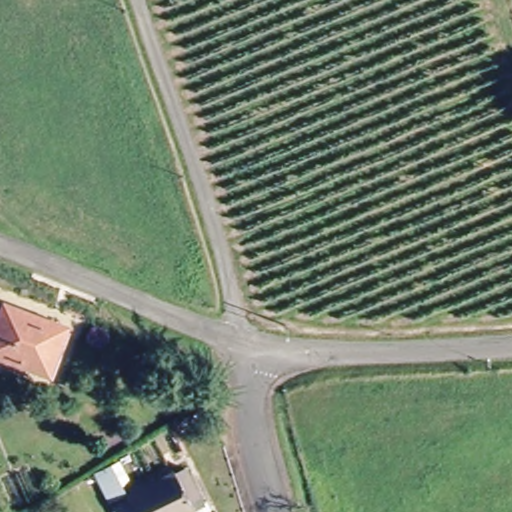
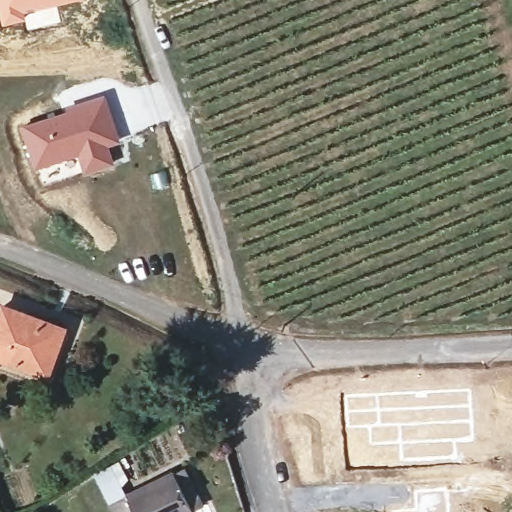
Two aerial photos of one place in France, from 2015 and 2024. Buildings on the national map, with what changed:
new [(60,22),(27,31),(24,20),(2,26),(0,16),(0,0),(70,0),(55,4),(60,22)]
new [(71,119),(72,123),(77,122),(75,114),(106,103),(120,147),(108,151),(114,169),(87,178),(81,160),(37,174),(24,135),(71,119)]
unchanged [(33,318),(32,323),(59,333),(44,373),(0,357),(0,316),(3,307),(33,318)]
unchanged [(105,506),(171,472),(182,466),(197,492),(187,498),(190,505),(179,512),(108,512),(105,506)]

